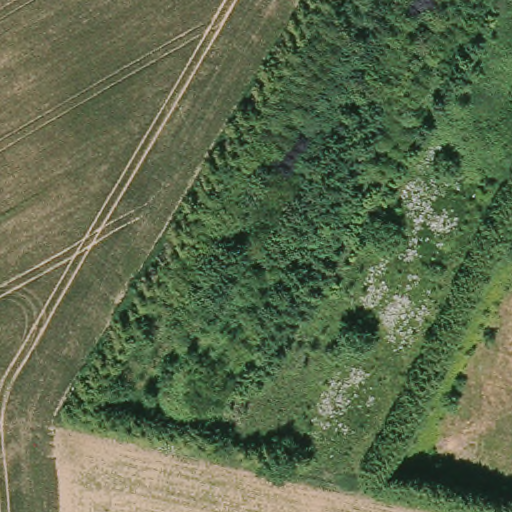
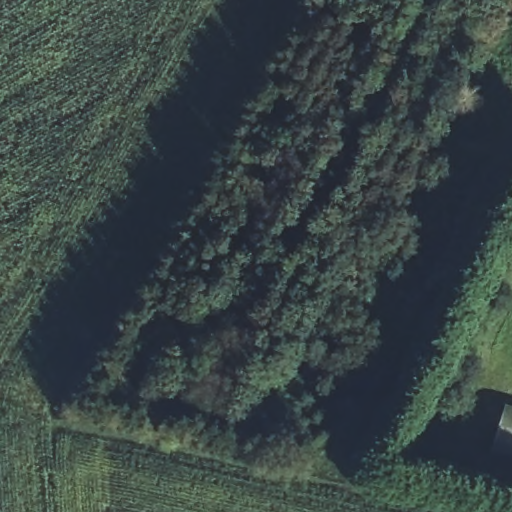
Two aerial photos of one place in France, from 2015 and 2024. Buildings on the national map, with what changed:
new [(490,453),(503,407),(512,410),(512,459),(490,453)]

